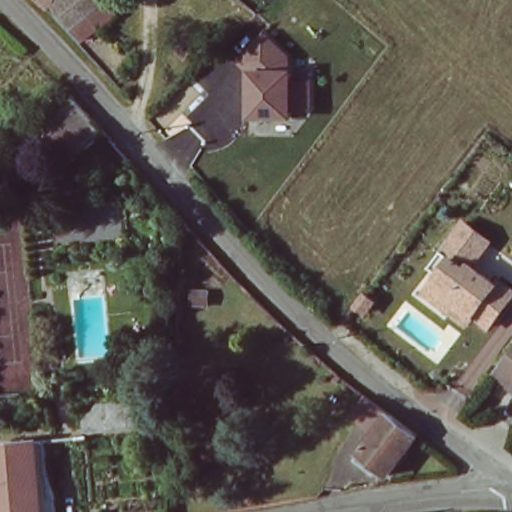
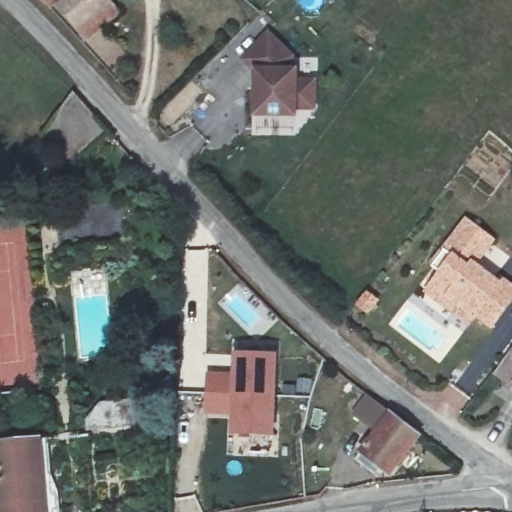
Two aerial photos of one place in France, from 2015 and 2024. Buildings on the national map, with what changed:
unchanged [(55,0),(51,5),(45,0),(55,0)]
unchanged [(86,34),(58,1),(59,0),(112,0),(119,7),(86,34)]
unchanged [(296,56),(299,68),(298,79),(319,79),(317,111),(301,109),(302,119),(257,117),(257,72),(243,58),(271,31),(296,56)]
unchanged [(79,100),(120,137),(119,137),(83,172),(47,142),(79,100)]
unchanged [(436,300),(449,282),(440,275),(452,259),(474,230),(500,251),(485,270),(510,289),(512,286),(512,318),(500,335),(485,322),(483,326),(478,332),(452,312),(436,300)]
unchanged [(512,350),(512,390),(491,378),(512,350)]
new [(234,373),(235,355),(280,356),(276,437),(230,435),(232,416),(207,413),(210,374),(234,373)]
unchanged [(390,480),(380,474),(376,480),(356,467),(378,437),(355,420),(359,412),(370,399),(420,438),(390,480)]
unchanged [(82,427),(85,416),(95,407),(122,402),(131,406),(142,421),(87,428),(81,429),(82,427)]
unchanged [(41,437),(48,488),(52,489),(55,508),(50,509),(50,512),(0,512),(0,442),(41,437)]

